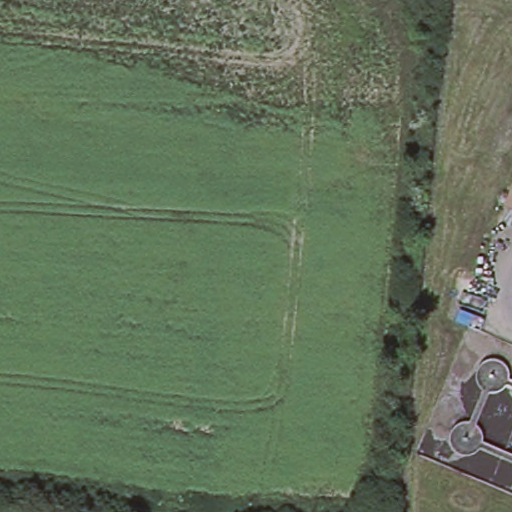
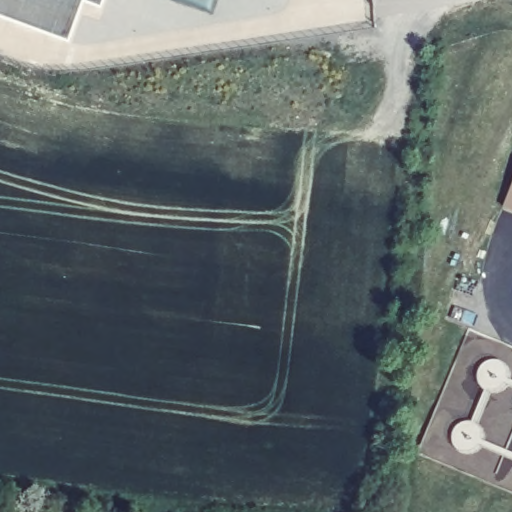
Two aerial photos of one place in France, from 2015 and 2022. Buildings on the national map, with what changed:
new [(0,10),(0,0),(73,0),(60,33),(0,10)]
unchanged [(512,192),(512,208),(507,206),(512,192)]

